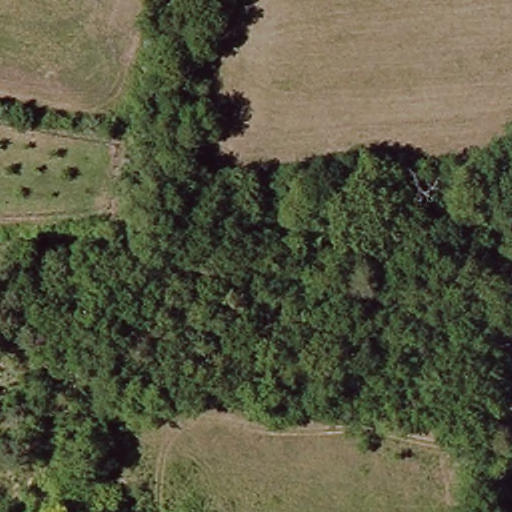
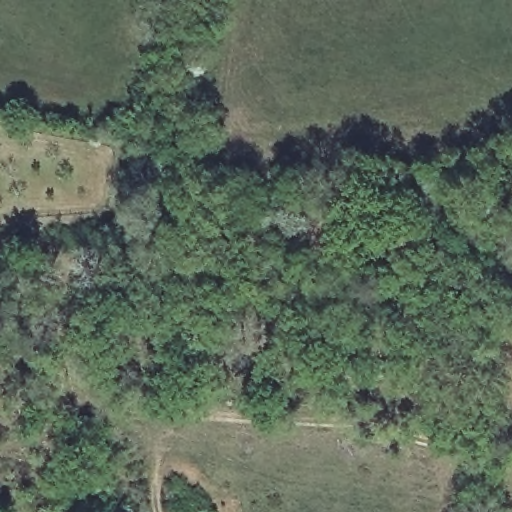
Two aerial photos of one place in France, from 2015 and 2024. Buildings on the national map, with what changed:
[]

